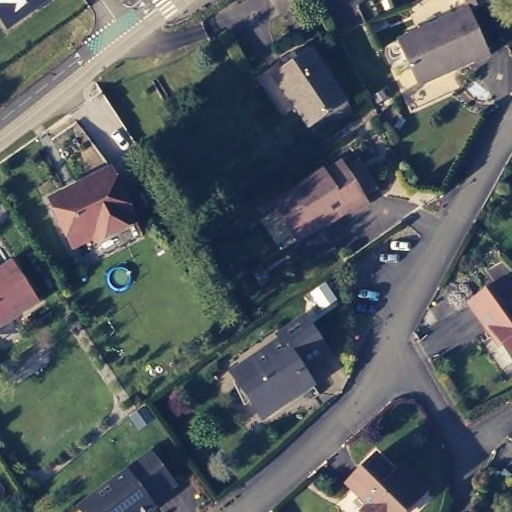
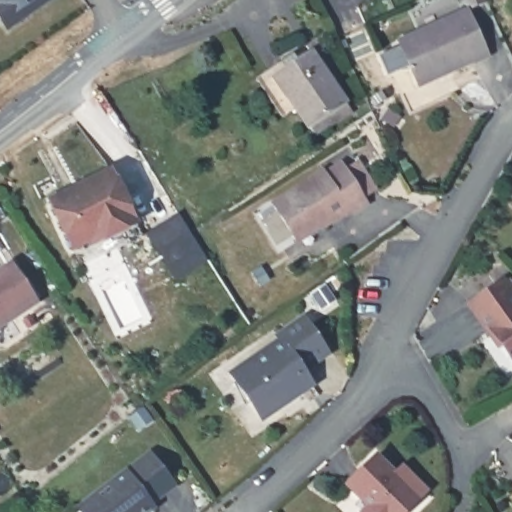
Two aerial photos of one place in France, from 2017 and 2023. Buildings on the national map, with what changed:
unchanged [(0,22),(0,0),(56,0),(8,32),(0,22)]
unchanged [(420,85),(402,44),(404,37),(469,7),(490,55),(476,61),(475,60),(448,72),(420,85)]
unchanged [(354,103),(316,129),(278,72),(316,47),(354,103)]
unchanged [(348,208),(321,225),(319,221),(315,224),(312,229),(296,240),(272,202),(324,168),(325,170),(342,160),(345,165),(357,157),(376,187),(364,195),(367,200),(350,211),(348,208)]
unchanged [(54,203),(82,189),(81,186),(114,170),(137,218),(76,249),(54,203)]
new [(179,213),(206,260),(175,280),(145,235),(179,213)]
unchanged [(42,305),(16,323),(5,330),(0,331),(0,279),(16,268),(42,305)]
unchanged [(504,275),(512,288),(512,363),(466,303),(504,275)]
unchanged [(307,366),(316,380),(301,391),(297,390),(283,400),(279,400),(262,410),(235,370),(256,355),(259,358),(286,339),(282,331),(308,312),(332,348),(307,366)]
unchanged [(373,500),(351,477),(379,448),(398,467),(406,459),(430,483),(422,491),(401,512),(370,512),(367,509),(365,507),(373,500)]
unchanged [(79,507),(150,451),(174,483),(151,501),(154,506),(146,512),(82,512),(79,507)]

